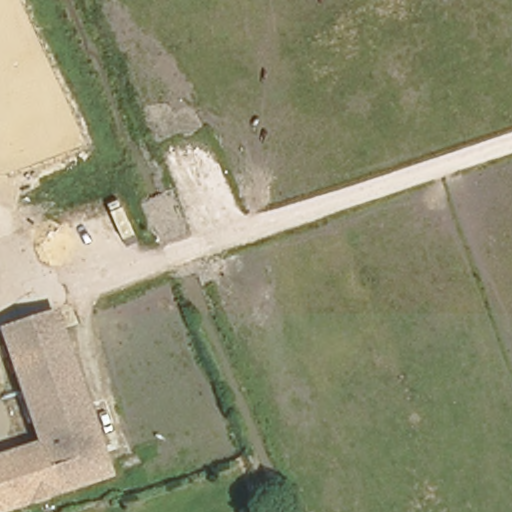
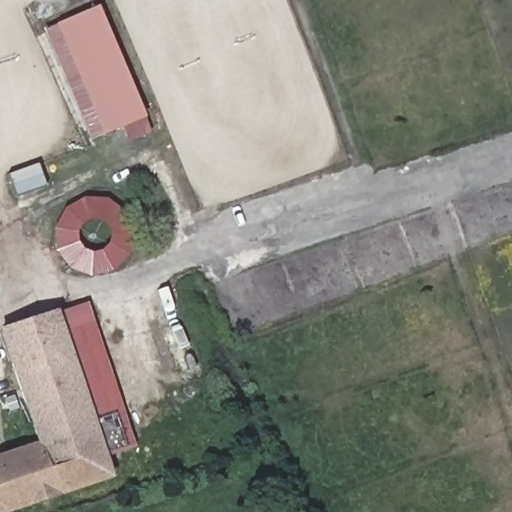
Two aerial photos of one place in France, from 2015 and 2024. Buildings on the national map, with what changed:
new [(98,6),(145,117),(103,135),(56,24),(98,6)]
new [(92,277),(67,268),(57,251),(54,229),(64,210),(84,199),(109,200),(125,211),(132,229),(130,253),(115,269),(92,277)]
new [(55,319),(89,308),(135,446),(103,457),(55,319)]
unchanged [(37,450),(1,337),(55,319),(111,481),(24,512),(0,512),(0,463),(37,450)]

